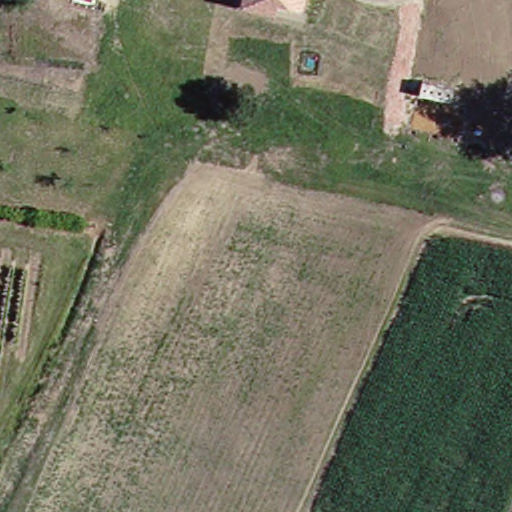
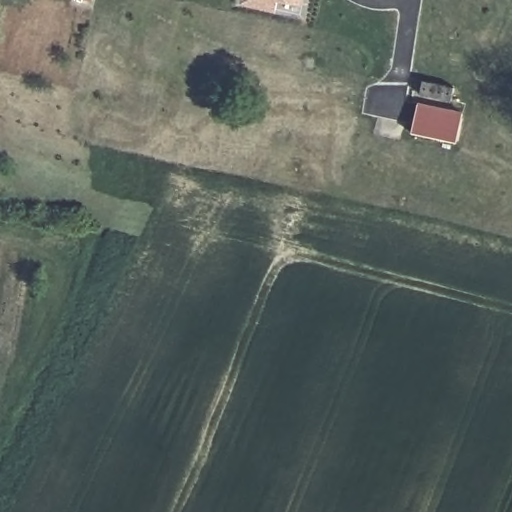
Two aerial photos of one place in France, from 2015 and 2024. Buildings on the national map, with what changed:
unchanged [(245,0),(308,0),(306,9),(284,2),(281,12),(244,3),(245,0)]
new [(411,134),(417,102),(463,112),(457,144),(411,134)]

